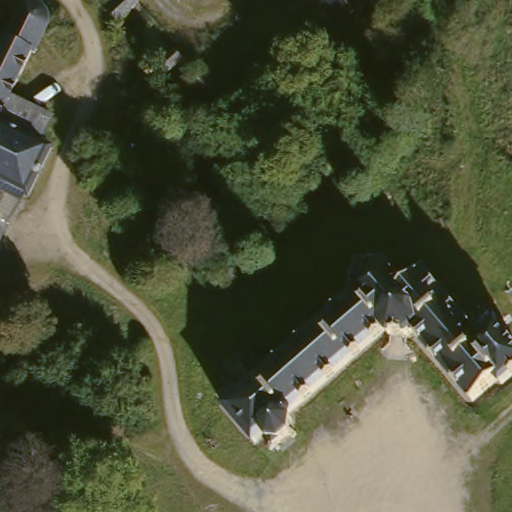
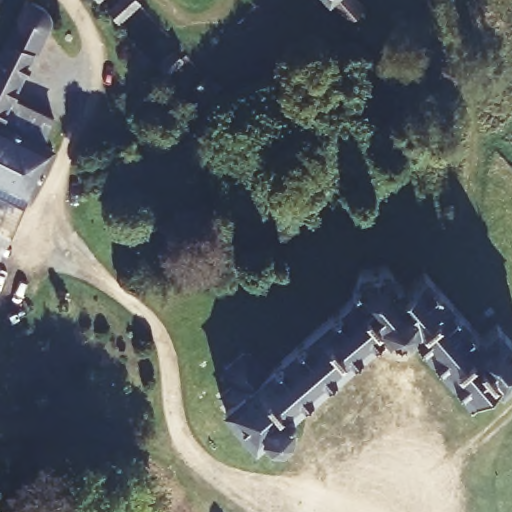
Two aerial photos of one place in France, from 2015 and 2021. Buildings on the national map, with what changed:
unchanged [(98,0),(103,0),(101,2),(98,0)]
unchanged [(109,7),(118,0),(138,0),(141,3),(122,21),(109,7)]
unchanged [(357,0),(350,31),(320,0),(357,0)]
unchanged [(59,25),(10,116),(42,133),(31,156),(40,160),(0,243),(0,55),(24,7),(59,25)]
unchanged [(192,55),(169,75),(156,62),(177,41),(192,55)]
unchanged [(212,71),(234,97),(215,115),(194,87),(212,71)]
unchanged [(480,400),(397,321),(298,403),(307,413),(282,437),(269,423),(257,434),(224,397),(357,287),(352,281),(360,275),(365,280),(374,272),(396,292),(415,277),(482,341),(497,326),(512,340),(512,371),(480,400)]

